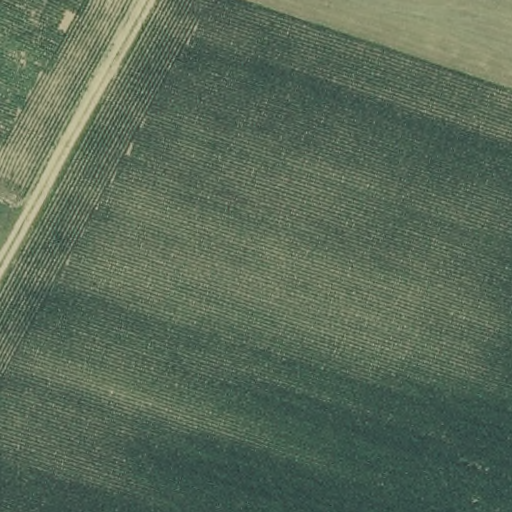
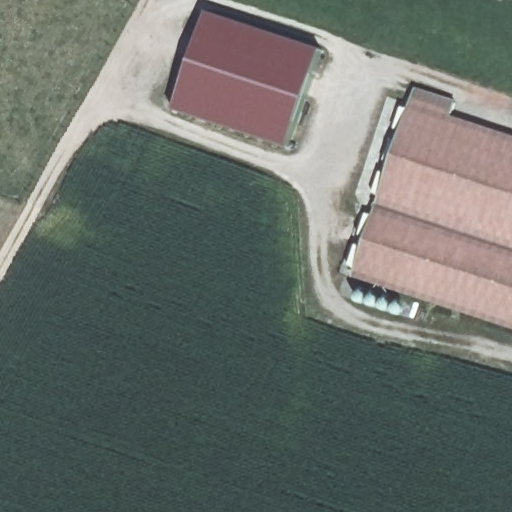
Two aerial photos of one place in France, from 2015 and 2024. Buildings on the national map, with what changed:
new [(207,10),(322,49),(289,148),(173,110),(207,10)]
new [(457,102),(452,117),(512,137),(512,326),(355,274),(415,89),(457,102)]

